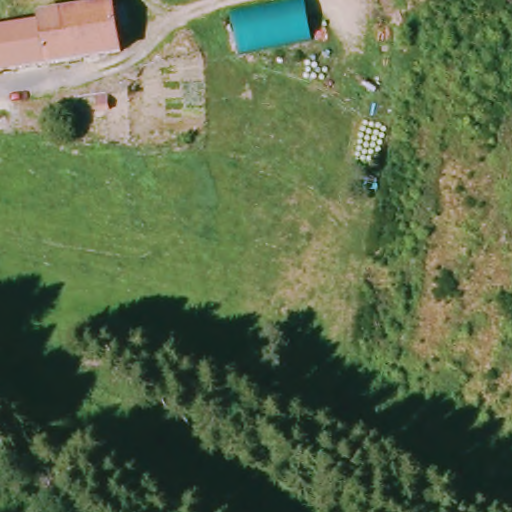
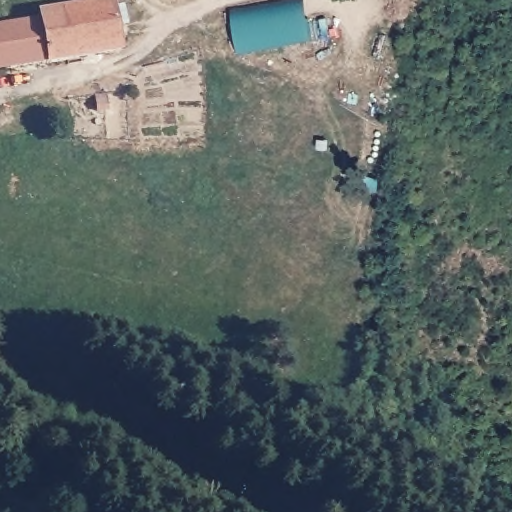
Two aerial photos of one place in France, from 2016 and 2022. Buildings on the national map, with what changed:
unchanged [(0,71),(0,27),(37,21),(35,11),(104,0),(111,0),(119,50),(42,65),(0,71)]
unchanged [(233,54),(227,13),(284,0),(300,0),(306,36),(233,54)]

